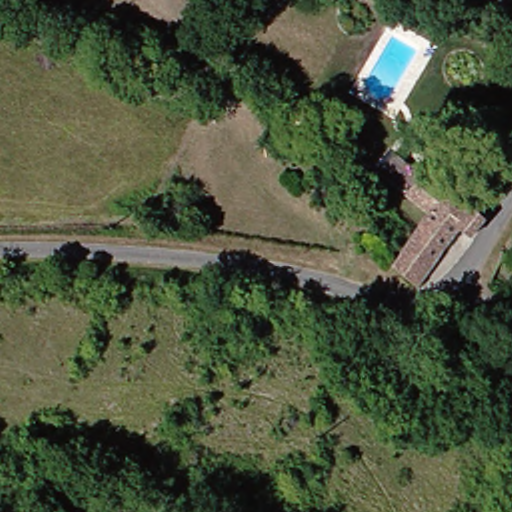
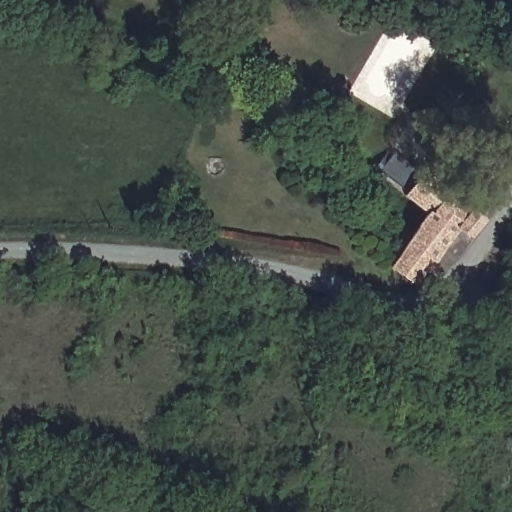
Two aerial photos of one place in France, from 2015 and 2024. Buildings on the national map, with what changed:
unchanged [(425,214),(392,192),(408,165),(481,215),(467,239),(454,231),(414,289),(384,272),(425,214)]

